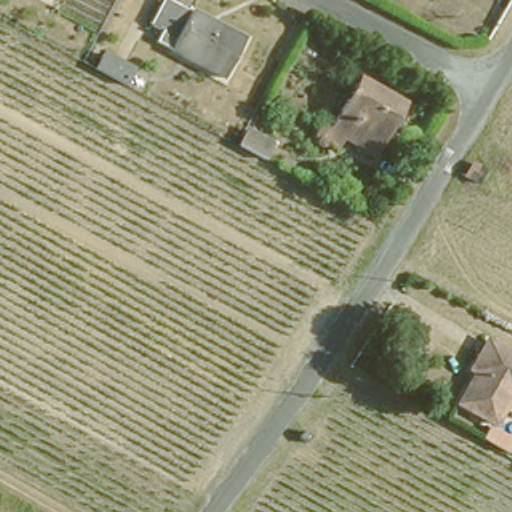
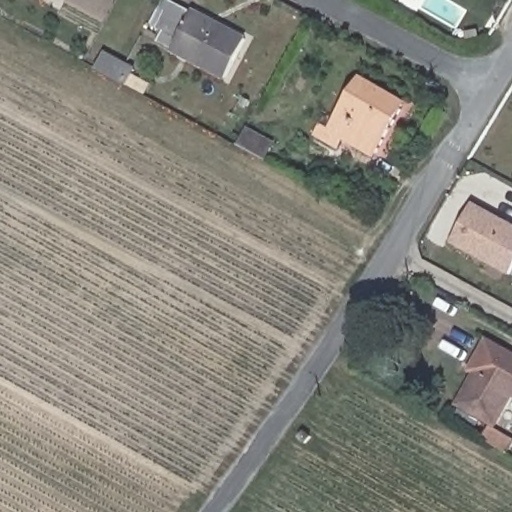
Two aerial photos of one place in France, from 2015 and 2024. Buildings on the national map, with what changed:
unchanged [(226,67),(172,39),(177,26),(151,11),(157,0),(193,0),(247,28),(226,67)]
unchanged [(114,80),(107,77),(87,66),(94,54),(114,65),(120,69),(114,80)]
unchanged [(409,94),(380,145),(350,127),(342,140),(318,126),(325,114),(336,120),(364,70),(409,94)]
unchanged [(270,142),(262,160),(236,146),(245,129),(270,142)]
unchanged [(474,180),(462,174),(470,161),(482,169),(474,180)]
new [(451,240),(472,204),(512,225),(512,270),(510,273),(451,240)]
unchanged [(492,329),(512,340),(512,380),(481,362),(475,359),(492,329)]
unchanged [(462,392),(481,362),(512,380),(512,396),(501,415),(462,392)]
unchanged [(512,437),(511,440),(486,426),(493,413),(512,424),(512,437)]
unchanged [(306,435),(298,443),(292,436),(300,428),(306,435)]

